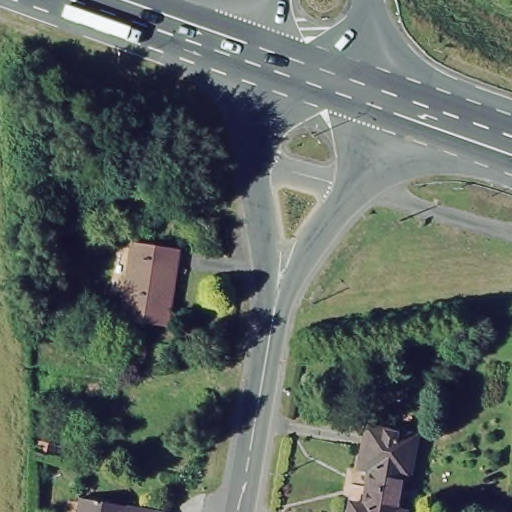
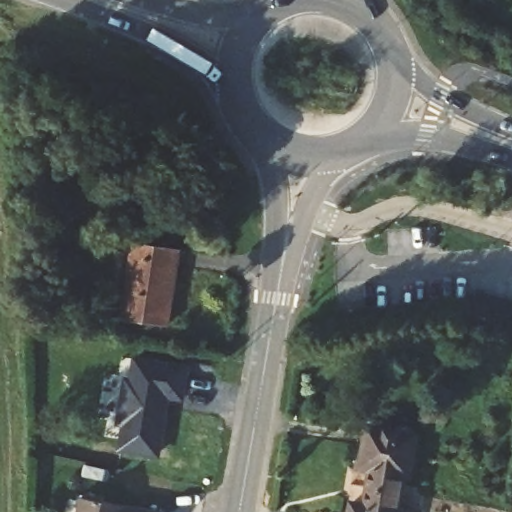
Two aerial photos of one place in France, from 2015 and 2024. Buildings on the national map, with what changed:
unchanged [(132,242),(137,243),(179,249),(172,327),(127,320),(124,320),(132,242)]
new [(116,426),(124,376),(130,377),(132,356),(190,365),(184,402),(170,400),(160,459),(118,452),(122,427),(116,426)]
unchanged [(372,431),(416,441),(409,481),(403,480),(401,495),(370,490),(373,472),(364,470),(372,431)]
unchanged [(404,512),(356,512),(357,503),(368,505),(370,490),(401,495),(398,511),(404,512)]
unchanged [(147,512),(79,512),(82,501),(147,512)]

